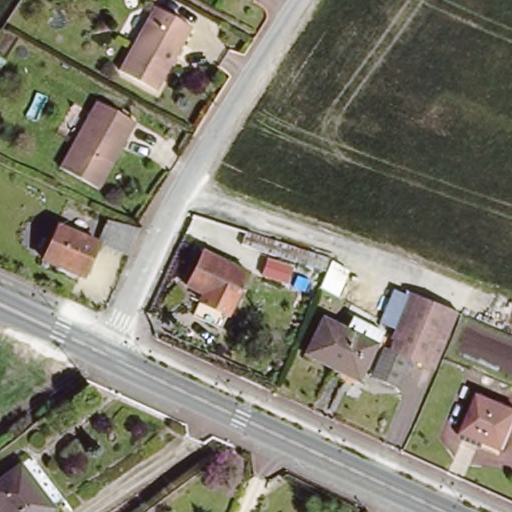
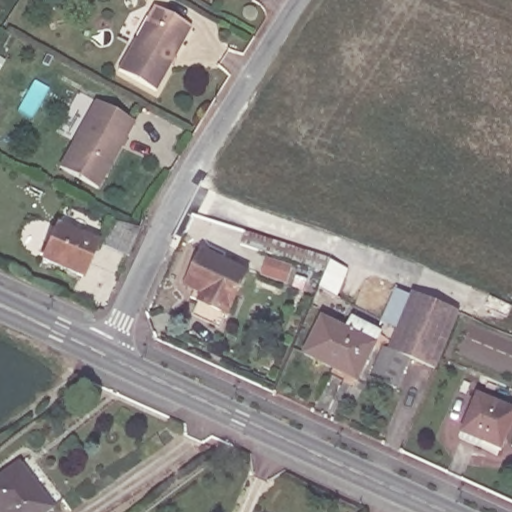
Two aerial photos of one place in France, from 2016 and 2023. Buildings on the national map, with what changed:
unchanged [(154,6),(190,27),(155,90),(118,70),(154,6)]
unchanged [(131,115),(96,180),(60,161),(96,96),(131,115)]
unchanged [(40,258),(55,224),(90,239),(95,225),(90,223),(93,214),(134,233),(123,254),(93,241),(77,276),(40,258)]
unchanged [(323,271),(238,246),(243,231),(330,257),(323,271)]
unchanged [(250,272),(230,314),(203,301),(207,294),(190,285),(205,252),(250,272)]
unchanged [(405,328),(418,296),(459,313),(436,367),(414,358),(401,389),(376,378),(390,347),(396,349),(405,328)]
unchanged [(367,343),(351,379),(300,356),(316,321),(367,343)]
unchanged [(480,391),(512,404),(512,427),(502,451),(485,443),(483,445),(460,436),(480,391)]
unchanged [(52,509),(49,512),(1,512),(0,511),(0,480),(20,466),(52,509)]

